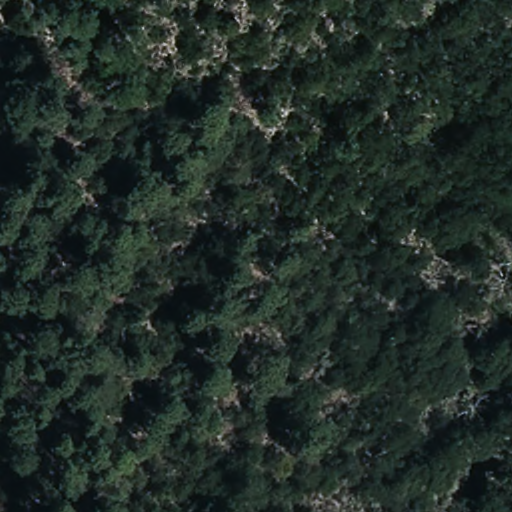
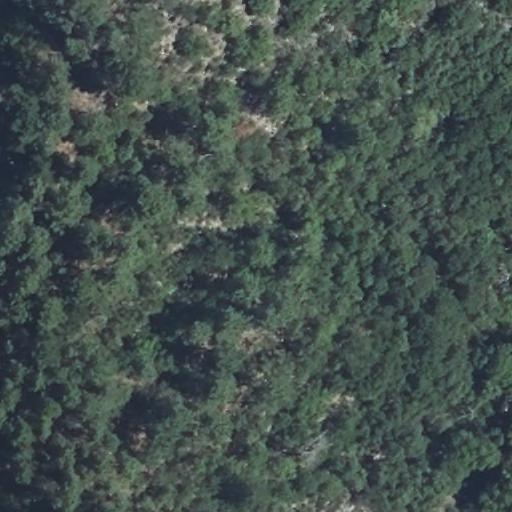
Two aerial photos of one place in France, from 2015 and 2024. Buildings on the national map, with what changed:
[]

